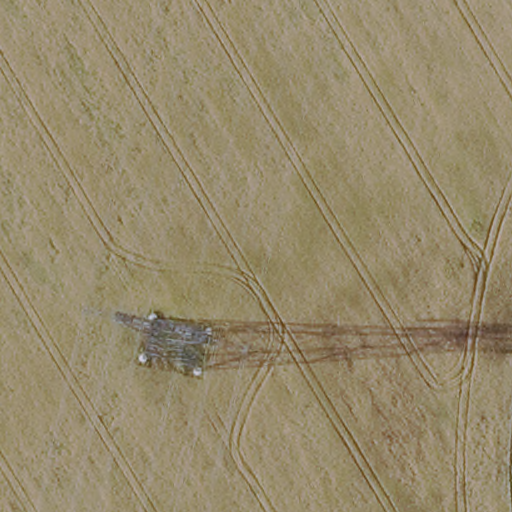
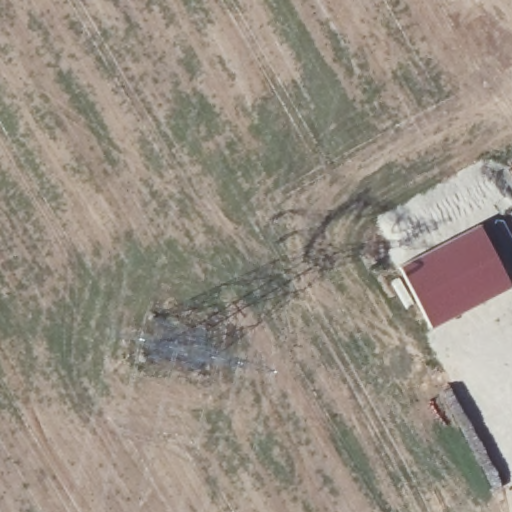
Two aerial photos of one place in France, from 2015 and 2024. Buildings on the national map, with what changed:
new [(481,224),(512,285),(512,286),(432,329),(399,267),(481,224)]

